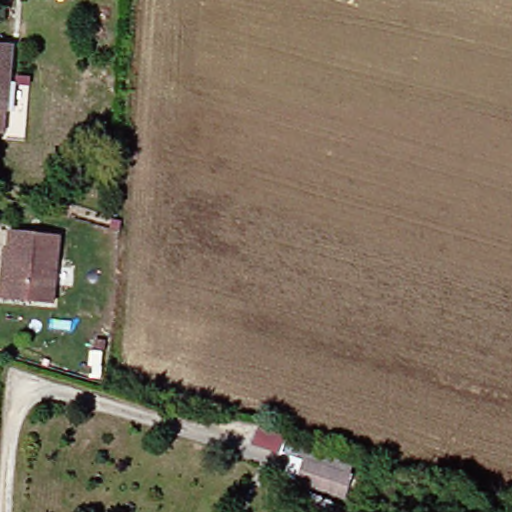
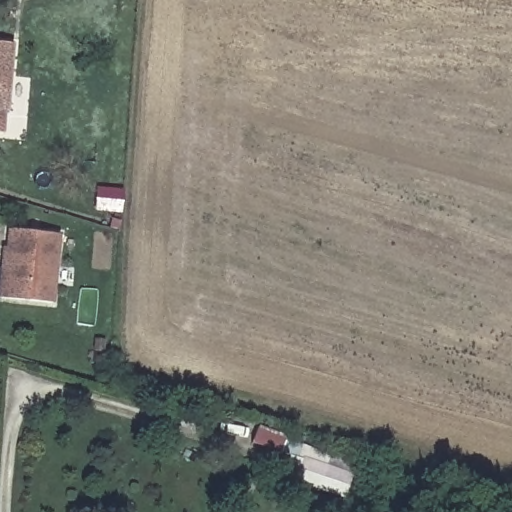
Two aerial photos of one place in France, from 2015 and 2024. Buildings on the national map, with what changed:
unchanged [(13,112),(10,134),(0,133),(0,40),(26,42),(15,112),(13,112)]
unchanged [(61,301),(12,296),(15,278),(20,278),(25,246),(19,246),(21,228),(67,231),(61,301)]
unchanged [(262,420),(293,429),(287,447),(257,440),(262,420)]
unchanged [(351,471),(342,494),(298,479),(306,457),(351,471)]

